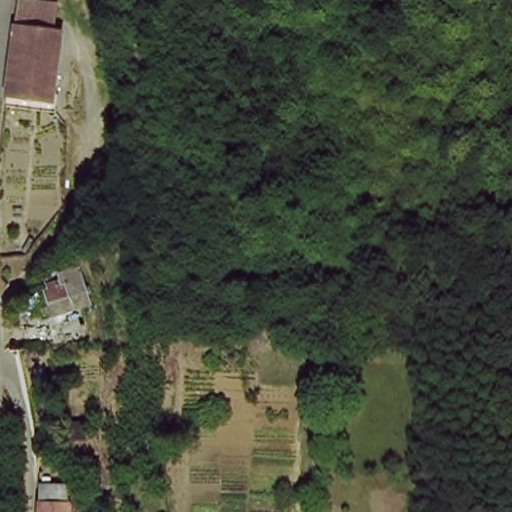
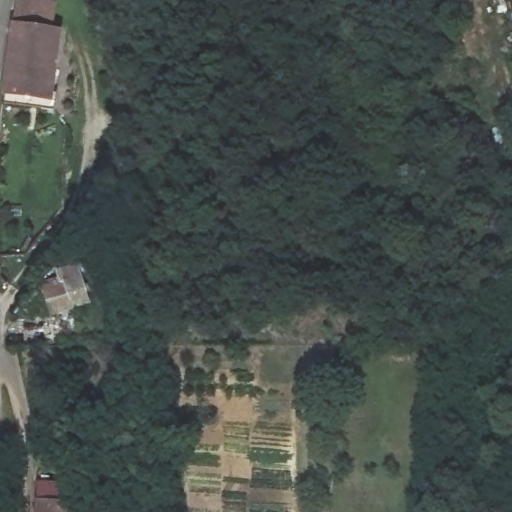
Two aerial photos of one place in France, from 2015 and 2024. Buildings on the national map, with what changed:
unchanged [(55,6),(53,25),(60,26),(56,94),(10,91),(17,17),(22,4),(55,6)]
unchanged [(63,281),(60,267),(71,265),(70,260),(79,257),(93,297),(54,308),(46,286),(63,281)]
unchanged [(36,506),(38,489),(66,490),(65,506),(65,512),(36,512),(36,506)]

